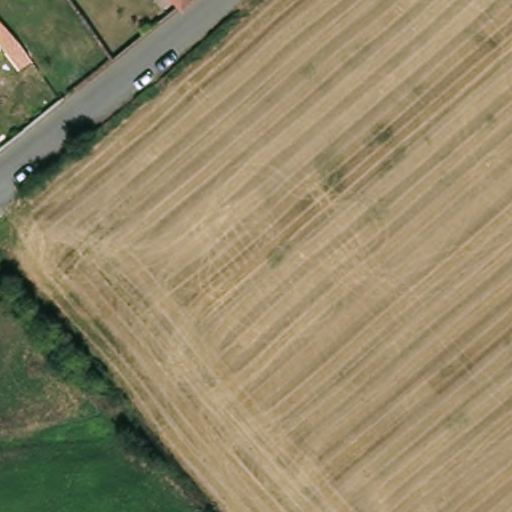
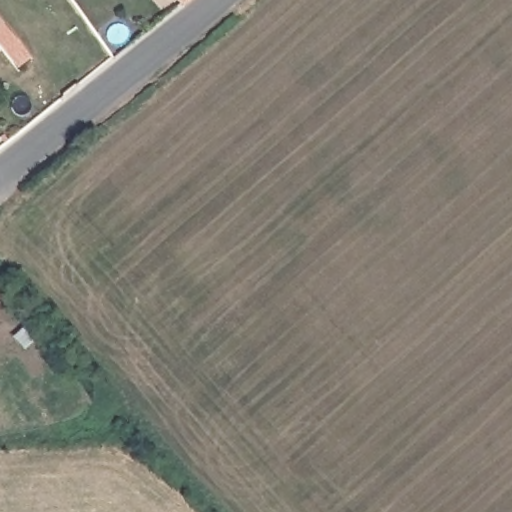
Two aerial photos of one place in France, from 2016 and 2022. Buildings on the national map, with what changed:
unchanged [(177,7),(175,5),(171,0),(185,0),(177,7)]
unchanged [(15,69),(0,50),(0,25),(13,39),(23,52),(28,59),(15,69)]

